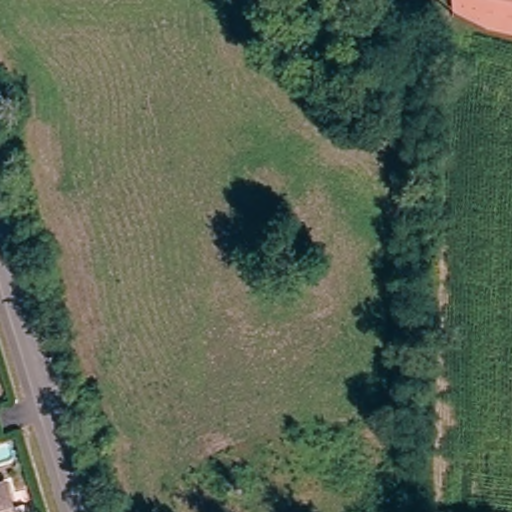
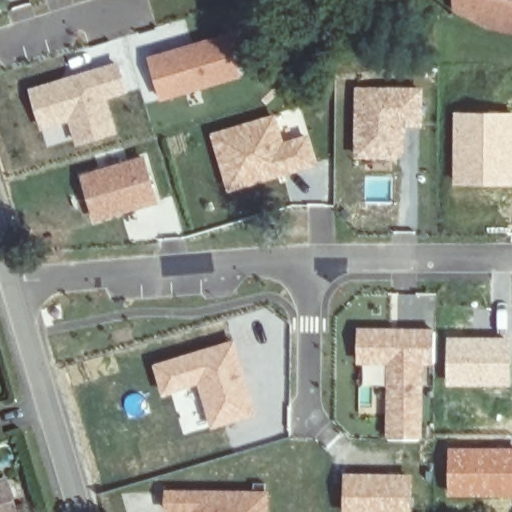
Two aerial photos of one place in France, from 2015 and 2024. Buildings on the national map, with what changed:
unchanged [(486,29),(449,14),(449,0),(512,0),(512,34),(486,29)]
new [(149,56),(229,34),(242,79),(162,101),(149,56)]
new [(71,116),(44,126),(34,93),(115,66),(123,90),(102,96),(112,130),(79,141),(71,116)]
new [(353,86),(423,86),(422,127),(405,127),(404,159),(352,157),(353,86)]
new [(452,110),(512,111),(512,185),(452,185),(452,110)]
new [(277,114),(286,143),(310,135),(317,166),(227,193),(210,133),(277,114)]
new [(81,177),(145,156),(159,204),(95,223),(81,177)]
new [(388,367),(357,364),(357,328),(435,329),(435,367),(425,366),(423,442),(385,439),(388,367)]
new [(446,336),(511,337),(511,386),(445,386),(446,336)]
new [(198,386),(162,396),(154,364),(235,340),(258,417),(212,430),(198,386)]
new [(447,447),(512,446),(512,496),(447,497),(447,447)]
new [(343,473),(413,474),(413,512),(344,512),(343,473)]
unchanged [(10,512),(0,512),(0,485),(1,485),(10,512)]
new [(164,489),(270,491),(270,512),(164,512),(164,489)]

